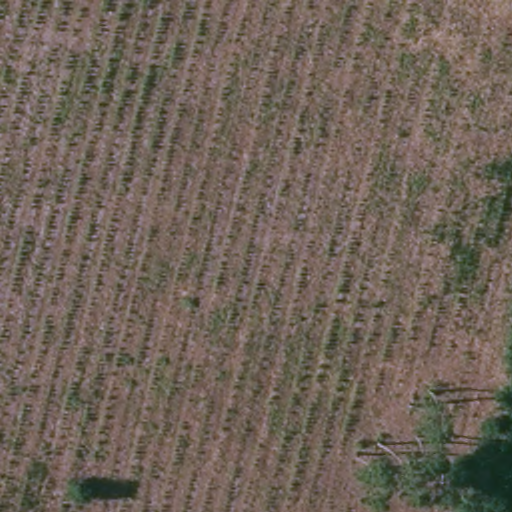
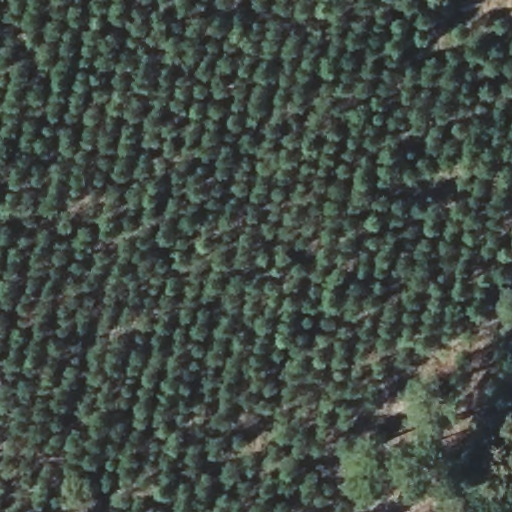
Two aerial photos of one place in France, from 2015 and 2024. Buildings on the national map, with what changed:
unchanged [(512,506),(512,512),(510,512),(512,506)]

